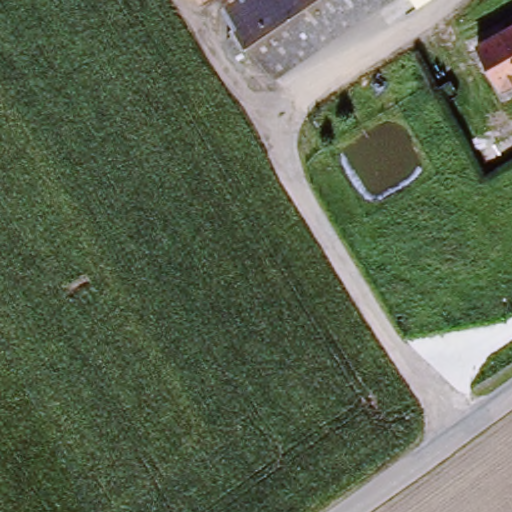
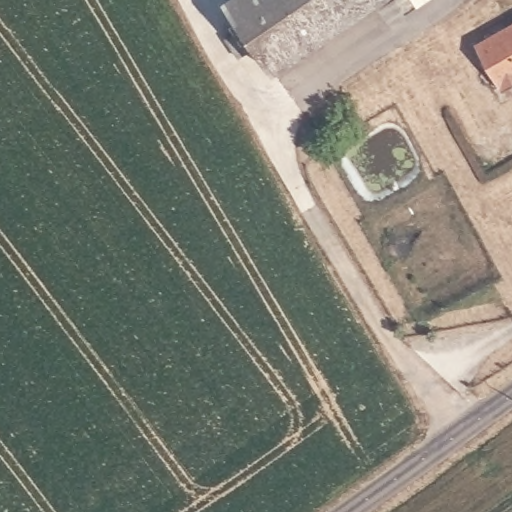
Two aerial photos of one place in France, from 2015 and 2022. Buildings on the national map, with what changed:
unchanged [(254,35),(234,46),(221,26),(243,15),(234,0),(371,0),(270,61),(254,35)]
unchanged [(505,90),(476,43),(512,24),(512,87),(505,90)]

